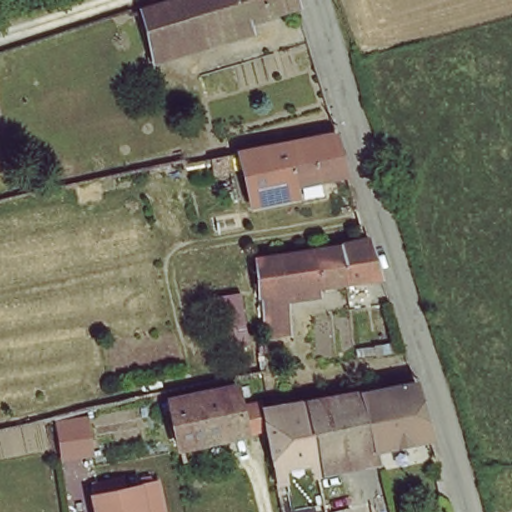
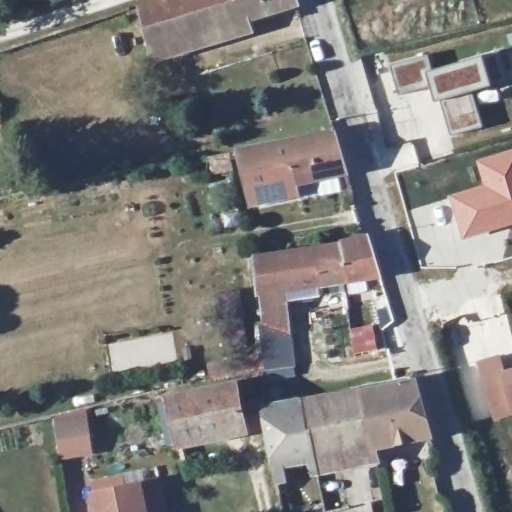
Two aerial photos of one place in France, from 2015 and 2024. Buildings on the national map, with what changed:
unchanged [(186,0),(195,30),(199,43),(153,56),(142,8),(141,5),(157,0),(186,0)]
unchanged [(186,0),(295,0),(195,30),(186,0)]
new [(425,55),(425,72),(479,57),(498,51),(507,81),(487,86),(469,91),(482,127),(449,136),(439,101),(434,102),(430,86),(398,95),(390,65),(425,55)]
unchanged [(247,195),(237,155),(259,151),(336,135),(340,149),(347,175),(247,195)]
new [(473,159),(512,147),(512,226),(460,241),(446,194),(480,183),(473,159)]
unchanged [(230,156),(233,171),(215,175),(211,159),(230,156)]
unchanged [(370,239),(383,277),(357,281),(348,283),(343,245),(370,239)]
unchanged [(287,292),(263,296),(261,273),(259,260),(285,255),(343,245),(348,283),(287,292)]
unchanged [(250,338),(227,343),(217,293),(241,290),(250,338)]
unchanged [(264,305),(263,296),(287,292),(293,336),(268,340),(264,305)]
new [(503,383),(512,381),(512,422),(507,423),(504,411),(485,416),(470,371),(497,363),(503,383)]
unchanged [(373,455),(363,397),(413,388),(429,445),(373,455)]
unchanged [(180,452),(169,406),(235,391),(240,415),(255,412),(258,413),(262,435),(180,452)]
unchanged [(315,467),(304,408),(363,397),(373,455),(315,467)]
unchanged [(273,475),(262,416),(304,408),(315,467),(273,475)]
new [(87,410),(94,456),(62,461),(55,415),(87,410)]
unchanged [(96,507),(94,498),(154,486),(156,495),(159,512),(96,512),(96,507)]

